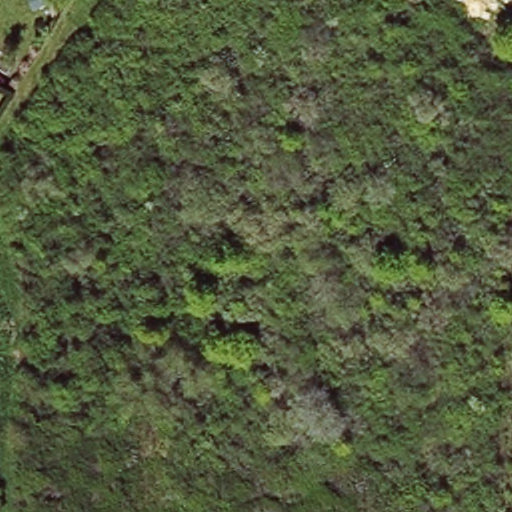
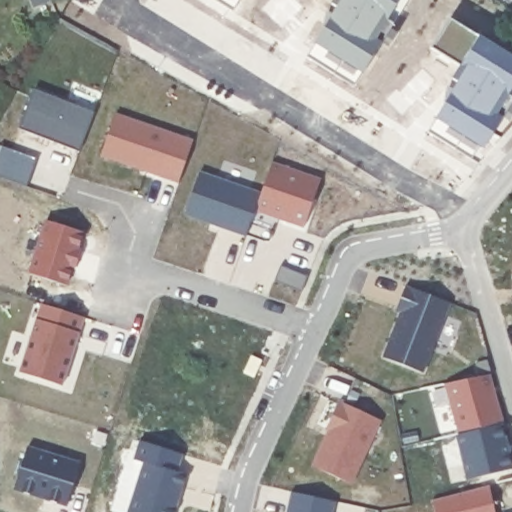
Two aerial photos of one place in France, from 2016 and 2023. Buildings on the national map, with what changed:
new [(78,151),(19,129),(34,89),(92,111),(78,151)]
new [(177,181),(101,155),(116,112),(192,139),(177,181)]
new [(302,227),(254,210),(272,161),(321,178),(302,227)]
new [(198,171),(260,193),(254,210),(246,234),(184,213),(198,171)]
new [(45,219),(82,231),(77,248),(80,249),(74,267),(71,266),(65,285),(28,273),(45,219)]
new [(422,372),(381,357),(399,312),(395,311),(405,285),(450,303),(422,372)]
new [(77,331),(62,384),(19,372),(35,317),(41,303),(84,318),(77,331)]
new [(457,433),(444,384),(489,374),(502,422),(500,423),(457,433)]
new [(353,484),(312,466),(327,430),(325,429),(337,400),(381,420),(353,484)]
new [(504,440),(500,441),(504,452),(507,451),(510,469),(467,477),(457,433),(500,423),(504,440)]
new [(176,471),(185,474),(173,512),(126,512),(143,461),(132,458),(138,439),(182,454),(176,471)]
new [(26,446),(79,462),(65,504),(13,488),(26,446)]
new [(493,512),(435,512),(432,500),(488,486),(493,512)]
new [(332,512),(287,512),(292,491),(334,501),(332,512)]

